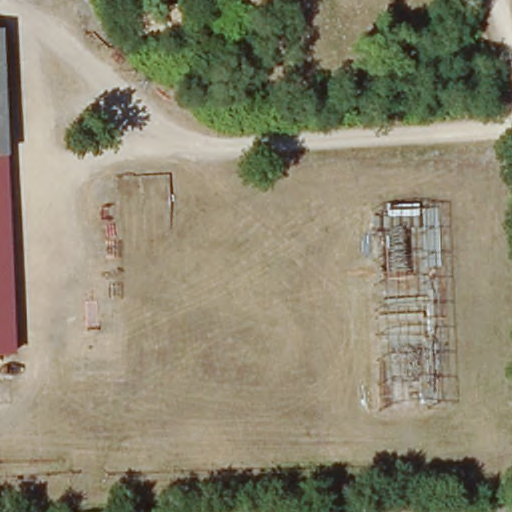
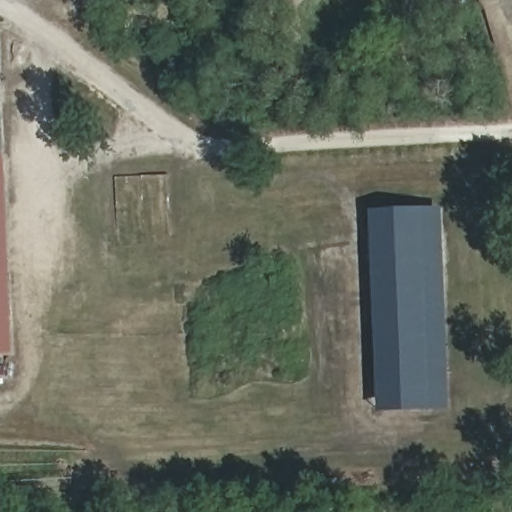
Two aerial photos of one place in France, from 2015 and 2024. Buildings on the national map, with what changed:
demolished [(256,0),(356,0),(357,6),(261,22),(256,0)]
unchanged [(457,76),(438,40),(458,29),(479,69),(457,76)]
unchanged [(0,156),(0,49),(6,155),(0,156)]
unchanged [(23,375),(0,377),(0,156),(6,155),(23,375)]
new [(440,207),(450,408),(376,412),(367,210),(440,207)]

